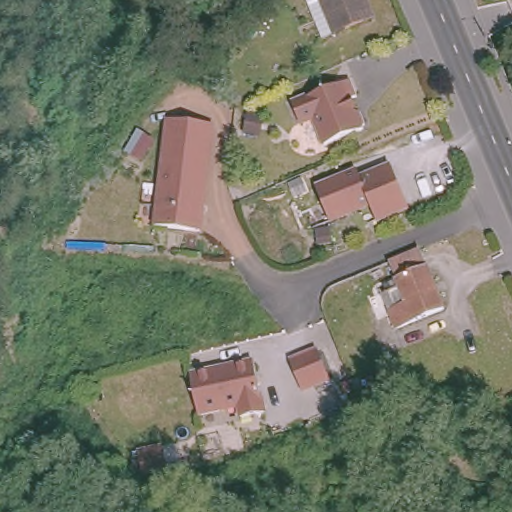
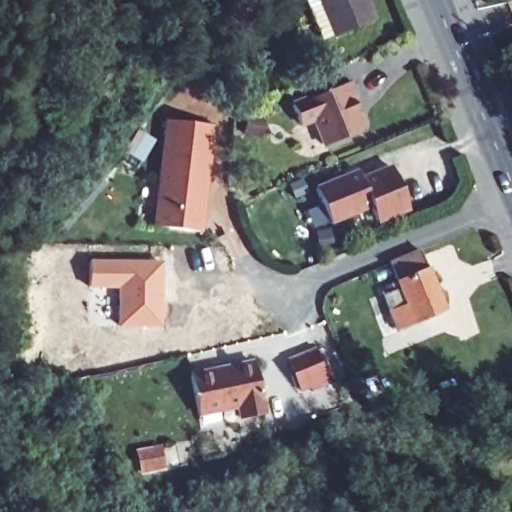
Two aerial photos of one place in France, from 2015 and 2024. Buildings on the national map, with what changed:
unchanged [(380,12),(342,27),(330,32),(318,0),(376,0),(380,12)]
unchanged [(355,80),(362,96),(355,99),(360,110),(365,113),(369,124),(367,129),(330,144),(318,118),(305,123),(297,104),(355,80)]
unchanged [(172,118),(217,123),(204,230),(159,224),(172,118)]
unchanged [(362,171),(365,179),(396,166),(413,208),(382,221),(375,205),(335,221),(321,188),(362,171)]
unchanged [(419,246),(443,305),(397,324),(382,290),(387,288),(385,282),(396,278),(388,258),(419,246)]
new [(91,287),(92,260),(163,261),(158,325),(127,327),(132,314),(132,287),(91,287)]
unchanged [(322,350),(334,378),(306,389),(295,361),(322,350)]
unchanged [(258,361),(270,411),(245,416),(242,405),(202,413),(193,374),(258,361)]

